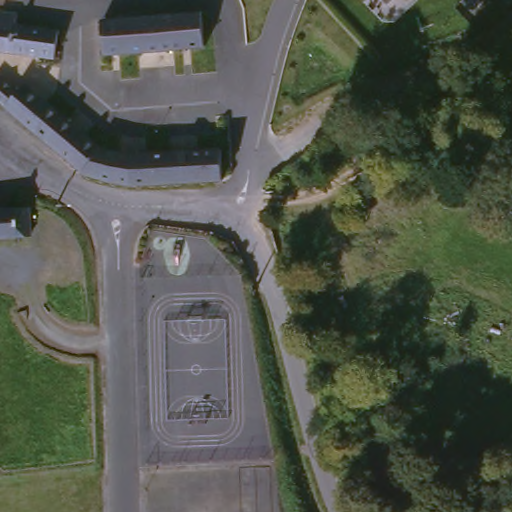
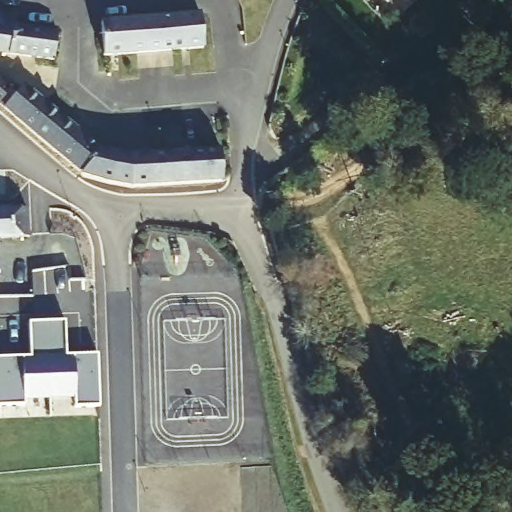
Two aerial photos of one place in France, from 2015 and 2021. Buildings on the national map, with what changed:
unchanged [(391,1),(390,0),(391,0),(391,1)]
unchanged [(199,7),(204,42),(109,50),(107,14),(199,7)]
unchanged [(15,24),(56,29),(55,57),(0,51),(0,12),(16,12),(15,24)]
unchanged [(20,88),(98,154),(126,157),(221,155),(222,186),(140,190),(113,190),(84,180),(41,144),(0,107),(0,84),(13,95),(20,88)]
unchanged [(29,236),(0,236),(0,209),(29,209),(29,236)]
demolished [(61,264),(64,287),(41,292),(39,267),(61,264)]
new [(74,397),(24,399),(24,406),(0,406),(0,358),(29,358),(29,323),(64,321),(65,357),(96,356),(98,407),(75,409),(74,397)]

